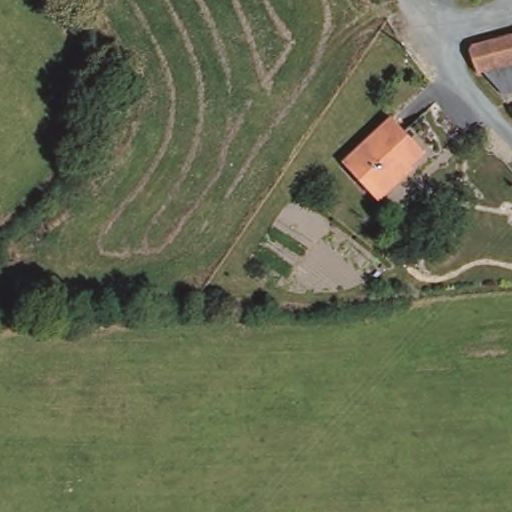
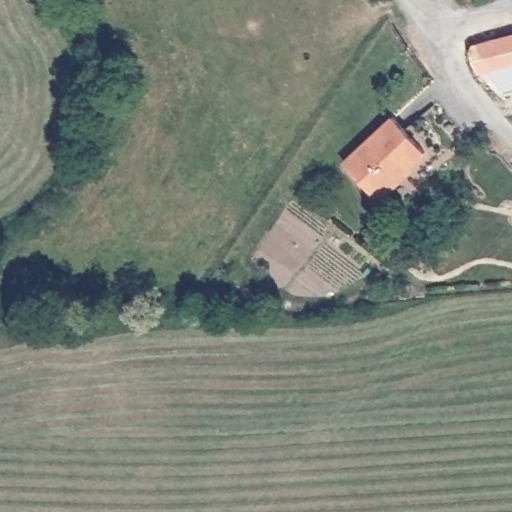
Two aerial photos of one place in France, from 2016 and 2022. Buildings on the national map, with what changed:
unchanged [(467,66),(467,57),(493,42),(512,31),(512,100),(503,105),(482,83),(478,85),(467,66)]
unchanged [(398,116),(428,151),(378,193),(348,158),(398,116)]

